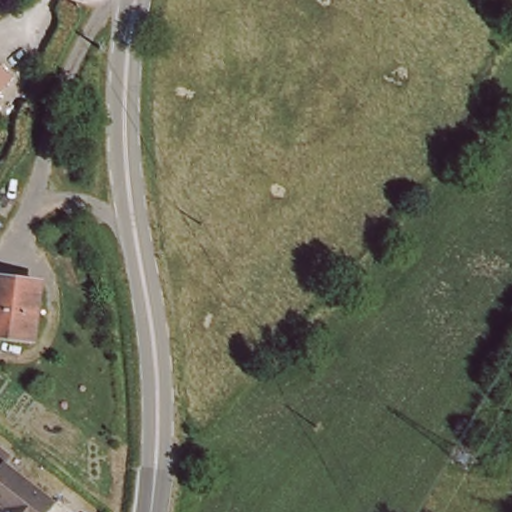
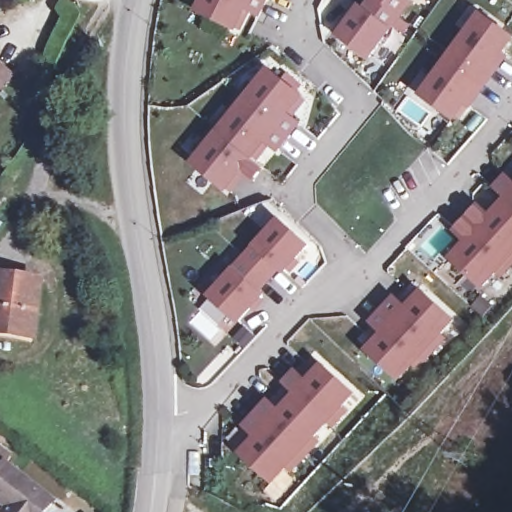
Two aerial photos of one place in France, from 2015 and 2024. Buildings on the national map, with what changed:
new [(260,16),(250,11),(238,32),(195,10),(199,0),(268,0),(260,16)]
new [(359,2),(362,4),(365,0),(408,0),(413,3),(394,27),(370,60),(335,35),(359,2)]
new [(512,33),(512,40),(505,51),(510,54),(471,108),(466,105),(455,121),(420,95),(480,11),(512,33)]
unchanged [(16,76),(0,95),(0,64),(16,76)]
new [(217,130),(269,66),(305,96),(292,113),(303,122),(278,154),(266,144),(253,159),(264,169),(252,184),(243,176),(229,194),(191,164),(217,130)]
new [(453,231),(481,202),(491,211),(504,197),(494,188),(506,173),(512,178),(512,267),(501,279),(495,274),(487,282),(490,285),(484,291),(448,258),(464,241),(453,231)]
new [(234,266),(280,217),(310,245),(302,256),(303,258),(291,275),(287,272),(285,275),(280,270),(262,290),(266,293),(264,295),(268,300),(257,312),(253,309),(239,323),(208,296),(234,266)]
unchanged [(42,282),(37,336),(0,332),(0,276),(42,282)]
new [(381,332),(370,322),(396,295),(406,305),(421,288),(456,320),(441,335),(445,339),(416,370),(411,366),(398,382),(363,350),(381,332)]
new [(253,436),(241,427),(268,398),(278,408),(293,393),(282,383),(296,368),(307,379),(322,361),(355,394),(342,407),(348,411),(332,429),(327,425),(315,436),(321,441),(291,475),(285,470),(273,485),(236,452),(253,436)]
unchanged [(48,512),(4,512),(8,508),(0,501),(0,457),(55,504),(48,512)]

